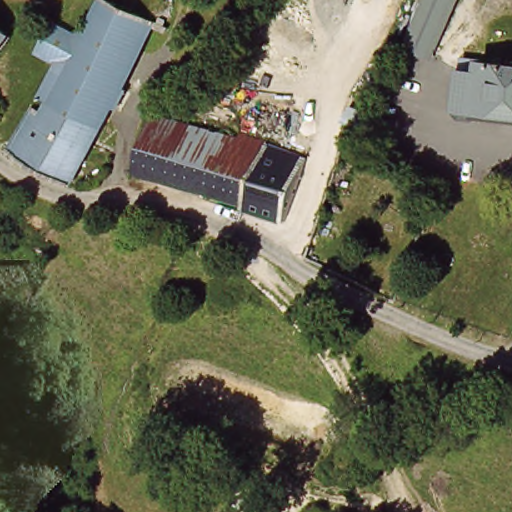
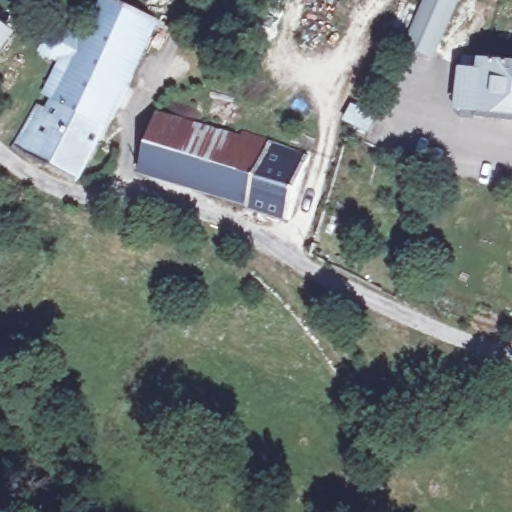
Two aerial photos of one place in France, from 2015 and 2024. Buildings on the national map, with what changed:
unchanged [(52,110),(57,97),(47,92),(62,60),(42,49),(58,19),(80,31),(85,23),(92,25),(105,0),(121,0),(130,4),(150,14),(159,18),(79,180),(17,146),(39,104),(52,110)]
unchanged [(459,0),(433,59),(407,48),(429,0),(459,0)]
unchanged [(165,14),(171,16),(169,23),(166,21),(162,20),(165,14)]
unchanged [(14,35),(0,53),(0,25),(14,35)]
unchanged [(475,120),(463,119),(457,112),(462,73),(464,73),(465,61),(512,67),(512,117),(483,114),(482,114),(475,120)]
unchanged [(243,135),(245,130),(310,154),(290,218),(248,203),(249,199),(143,168),(157,111),(243,135)]

